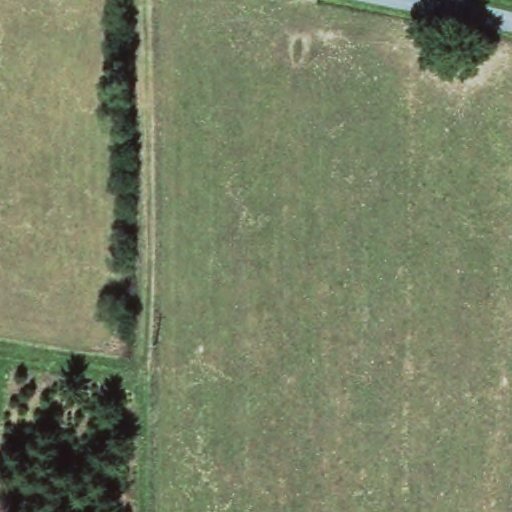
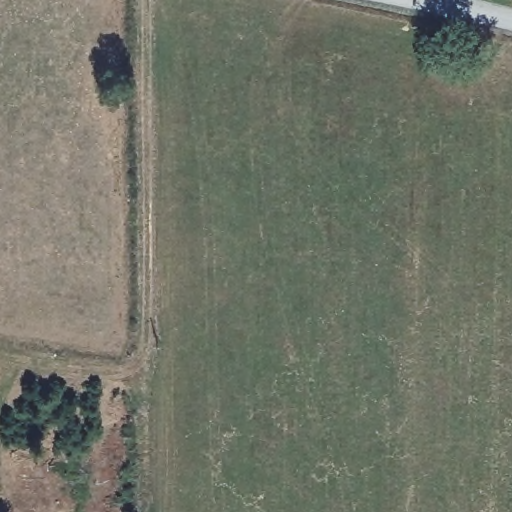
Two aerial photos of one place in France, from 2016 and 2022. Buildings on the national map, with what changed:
[]

